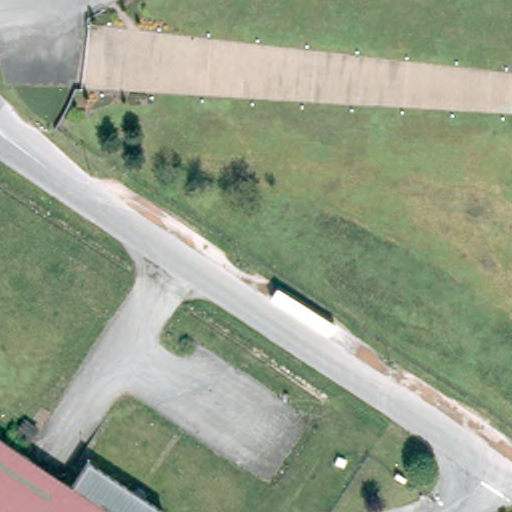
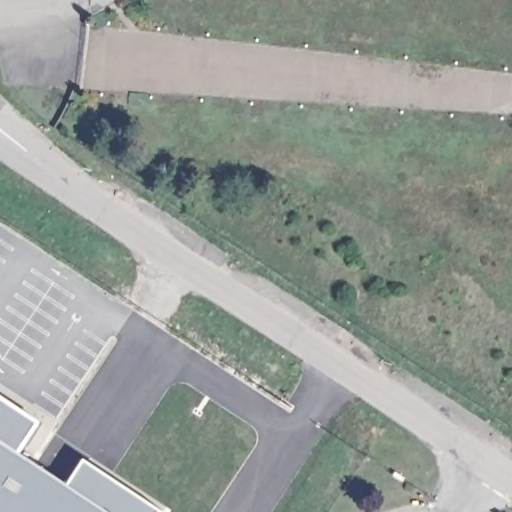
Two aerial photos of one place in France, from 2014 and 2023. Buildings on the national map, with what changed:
new [(23,449),(0,433),(0,397),(40,424),(23,449)]
unchanged [(162,507),(159,512),(0,512),(0,433),(69,479),(86,456),(162,507)]

